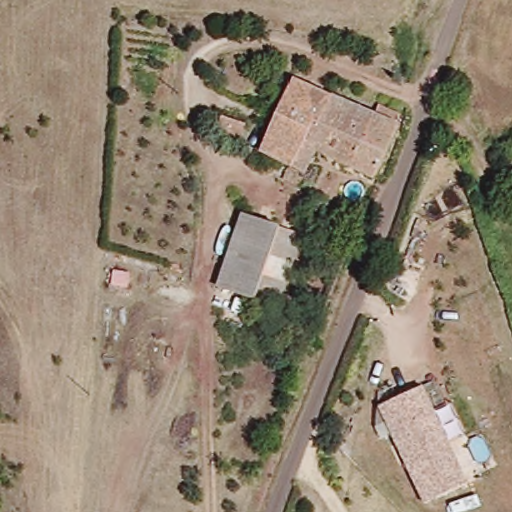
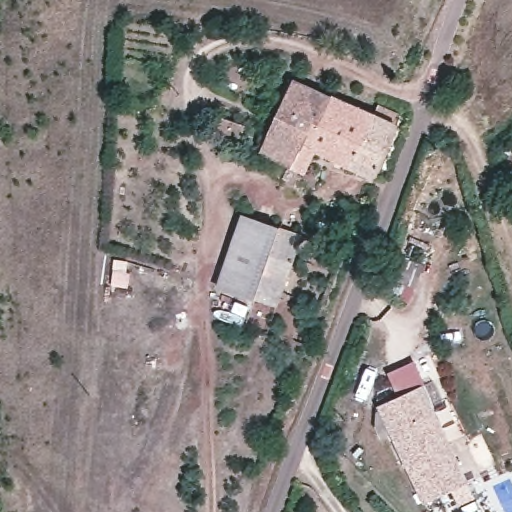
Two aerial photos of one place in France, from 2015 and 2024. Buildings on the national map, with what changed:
unchanged [(250,158),(288,73),(327,88),(317,106),(292,133),(270,166),(250,158)]
unchanged [(292,133),(317,106),(327,88),(371,111),(351,165),(312,148),(297,177),(285,173),(279,186),(262,180),(270,166),(292,133)]
unchanged [(371,111),(375,109),(395,120),(372,174),(351,165),(371,111)]
unchanged [(243,206),(302,225),(272,303),(215,281),(243,206)]
unchanged [(420,389),(468,481),(423,507),(375,409),(420,389)]

